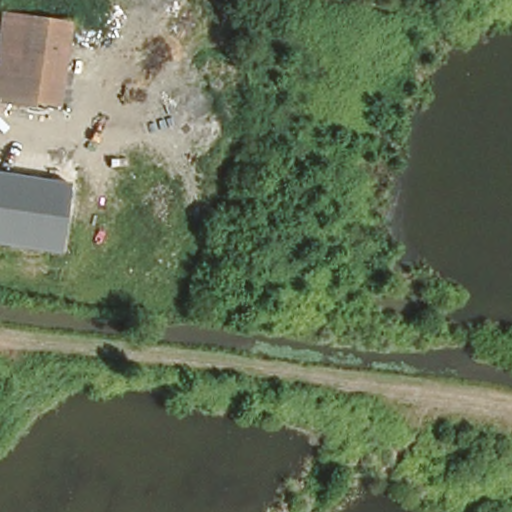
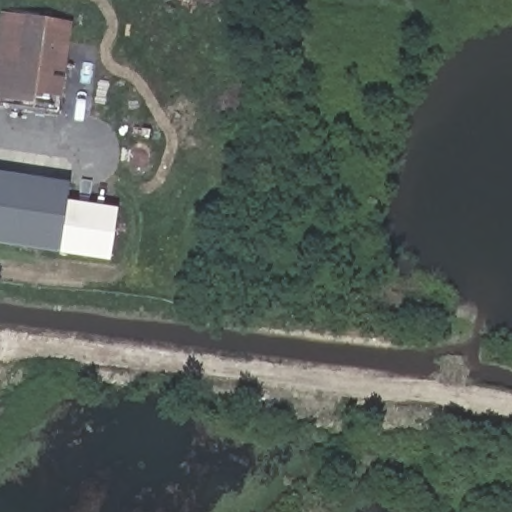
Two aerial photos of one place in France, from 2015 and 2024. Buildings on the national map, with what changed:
unchanged [(70,20),(57,106),(31,101),(31,107),(0,102),(0,12),(70,20)]
unchanged [(67,180),(57,249),(0,241),(0,171),(67,180)]
new [(117,208),(110,260),(57,253),(57,249),(64,199),(117,208)]

